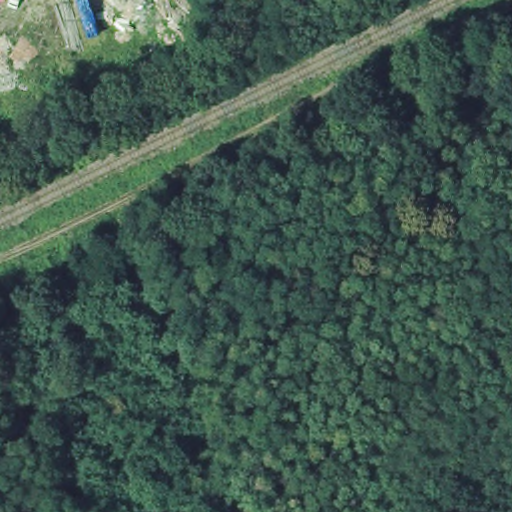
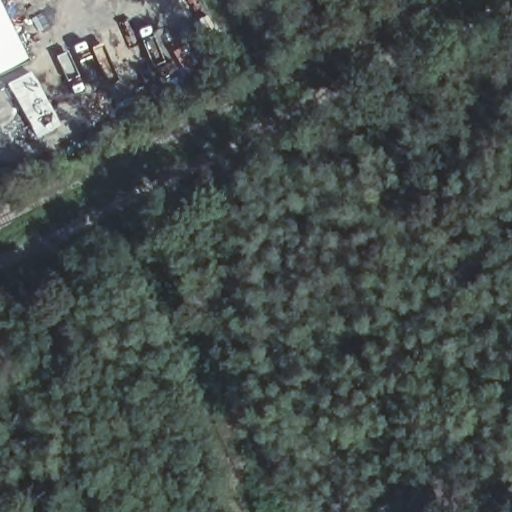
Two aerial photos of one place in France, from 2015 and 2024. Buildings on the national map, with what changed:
new [(0,83),(0,0),(4,0),(36,65),(0,83)]

